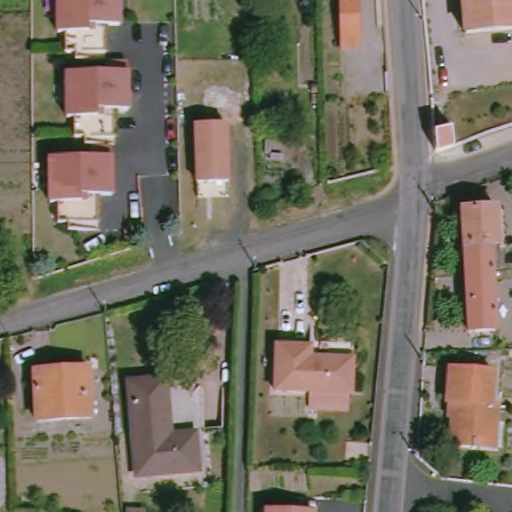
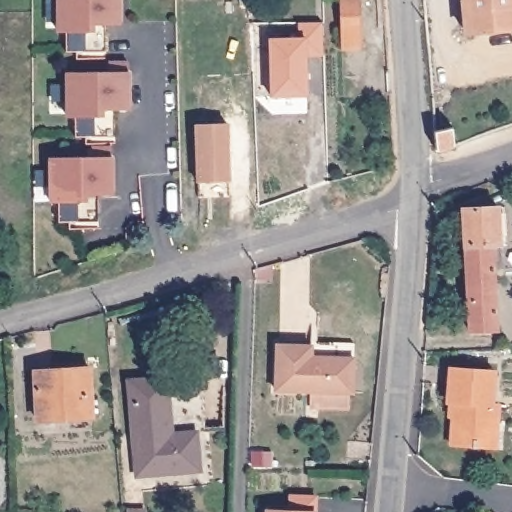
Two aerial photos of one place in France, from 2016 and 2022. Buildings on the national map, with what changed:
unchanged [(109,22),(100,21),(100,27),(105,27),(105,49),(65,49),(65,29),(58,29),(58,0),(119,0),(119,22),(109,22)]
unchanged [(337,0),(359,0),(361,51),(339,52),(337,0)]
unchanged [(465,0),(512,0),(512,31),(468,34),(465,0)]
new [(326,56),(305,57),(306,97),(271,97),(269,41),(298,40),(298,24),(325,23),(326,56)]
unchanged [(108,69),(108,60),(109,60),(128,60),(128,106),(110,106),(109,106),(109,112),(110,112),(113,112),(113,134),(110,134),(73,134),(73,114),(66,114),(66,69),(108,69)]
unchanged [(196,184),(195,125),(226,124),(226,182),(196,184)]
unchanged [(455,125),(458,146),(442,152),(437,155),(435,132),(439,131),(455,125)]
unchanged [(90,153),(90,145),(110,145),(110,191),(91,191),(91,197),(96,197),(96,218),(56,218),(56,198),(48,198),(48,154),(90,153)]
unchanged [(494,210),(497,266),(489,266),(493,330),(464,332),(458,211),(494,210)]
unchanged [(350,398),(272,392),(276,345),(311,348),(310,359),(353,363),(350,398)]
unchanged [(88,416),(34,420),(30,370),(83,366),(88,416)]
unchanged [(487,371),(486,405),(491,405),(491,423),(484,422),(484,442),(469,441),(469,449),(444,448),(447,405),(441,405),(444,368),(487,371)]
unchanged [(158,381),(163,432),(188,430),(193,472),(131,477),(123,385),(158,381)]
unchanged [(264,508),(313,511),(313,512),(264,512),(264,508)]

